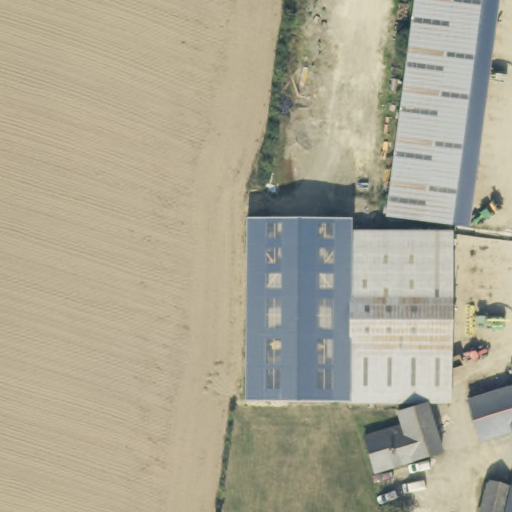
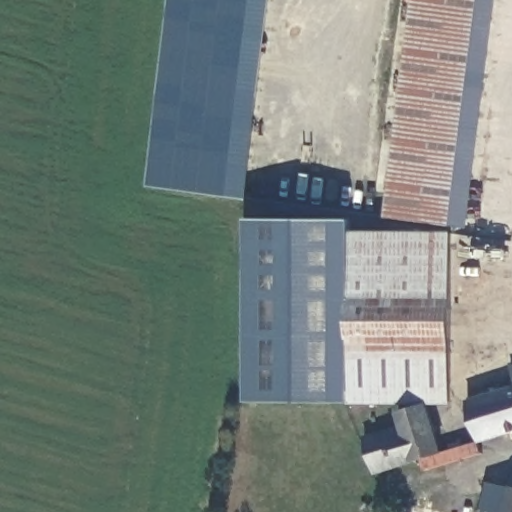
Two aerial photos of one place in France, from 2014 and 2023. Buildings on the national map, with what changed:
new [(147,185),(171,0),(273,0),(248,198),(147,185)]
unchanged [(387,216),(414,0),(480,0),(454,225),(387,216)]
new [(454,225),(480,0),(499,0),(468,227),(454,225)]
unchanged [(249,403),(249,221),(350,221),(348,402),(249,403)]
unchanged [(449,232),(448,401),(350,400),(350,232),(376,231),(449,232)]
unchanged [(479,440),(467,403),(512,389),(512,430),(479,440)]
unchanged [(441,451),(376,472),(365,437),(402,425),(398,412),(426,404),(441,451)]
unchanged [(487,492),(510,498),(512,491),(512,512),(483,512),(487,492)]

